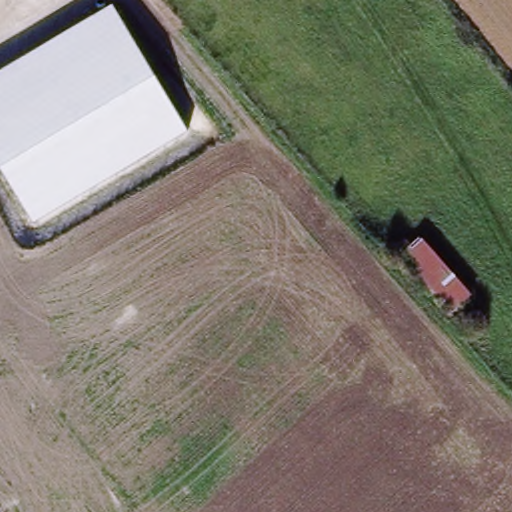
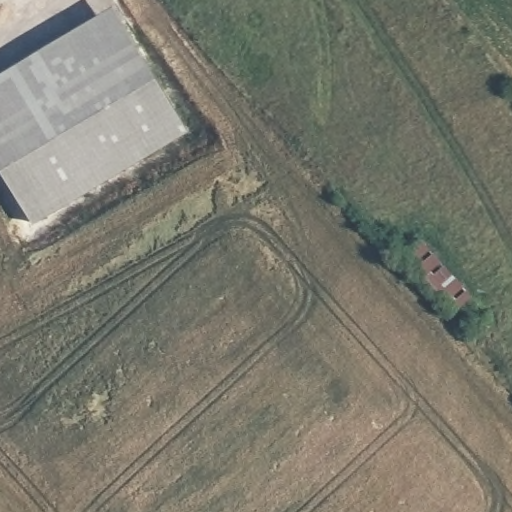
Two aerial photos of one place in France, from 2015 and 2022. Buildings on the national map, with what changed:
unchanged [(0,170),(0,88),(120,17),(180,124),(30,217),(0,170)]
unchanged [(455,312),(441,299),(390,239),(408,225),(460,281),(473,295),(455,312)]

